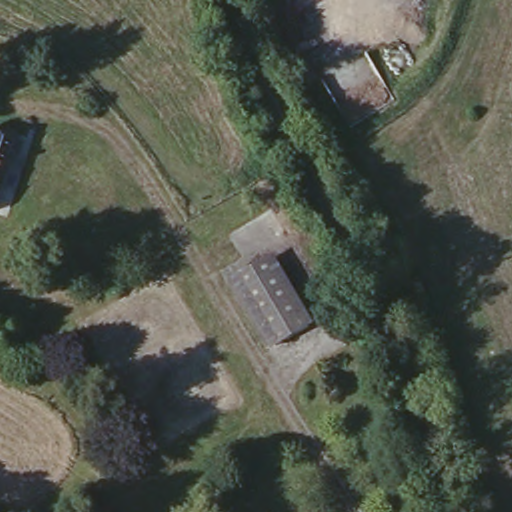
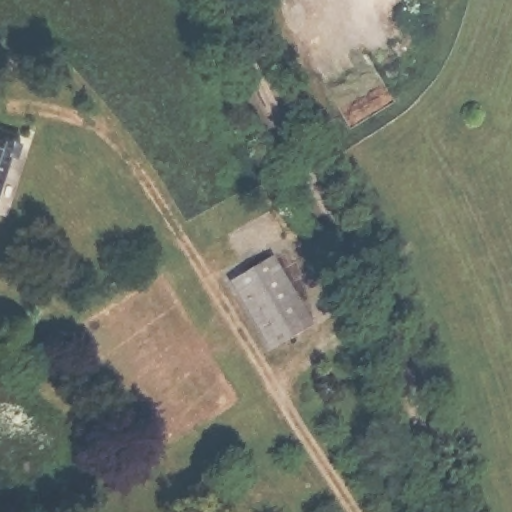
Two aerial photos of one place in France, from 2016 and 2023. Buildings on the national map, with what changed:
unchanged [(21,136),(0,196),(0,127),(21,136)]
unchanged [(269,260),(304,320),(286,328),(254,267),(269,260)]
unchanged [(286,328),(272,335),(239,275),(254,267),(286,328)]

